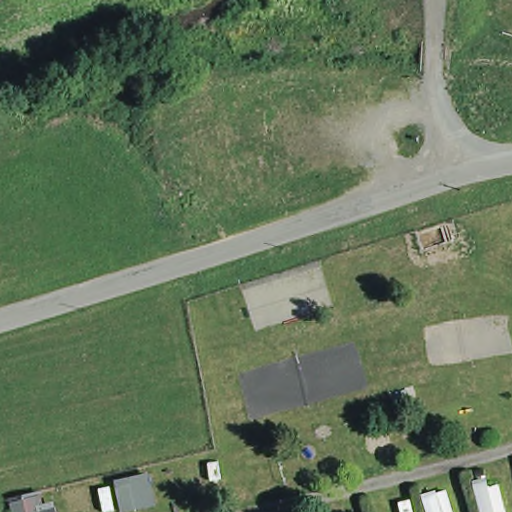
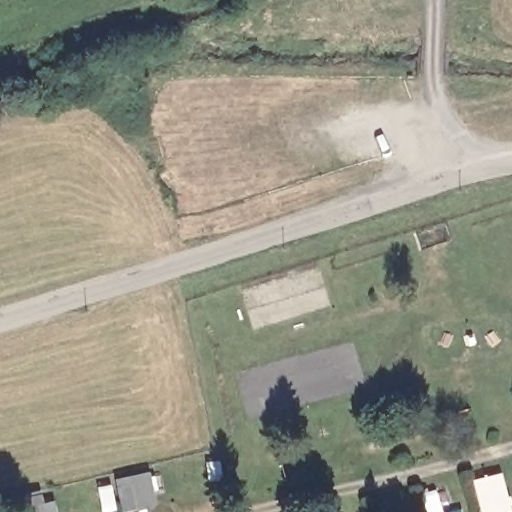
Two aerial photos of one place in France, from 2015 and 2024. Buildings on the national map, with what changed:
[]

